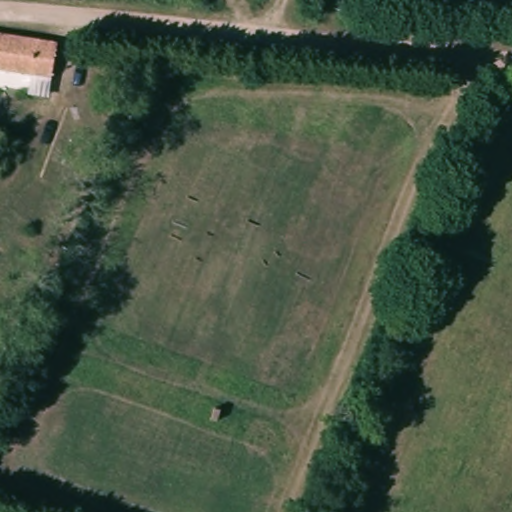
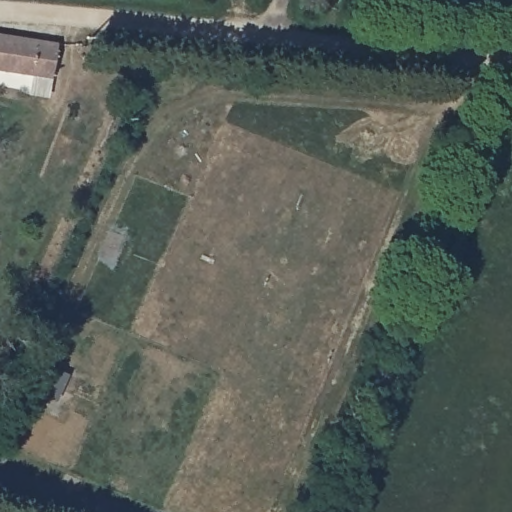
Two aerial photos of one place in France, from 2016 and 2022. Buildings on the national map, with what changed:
unchanged [(51,40),(47,89),(26,88),(25,72),(0,70),(0,38),(51,40)]

